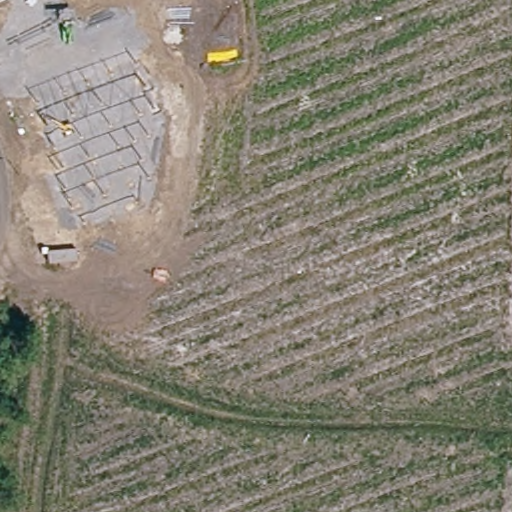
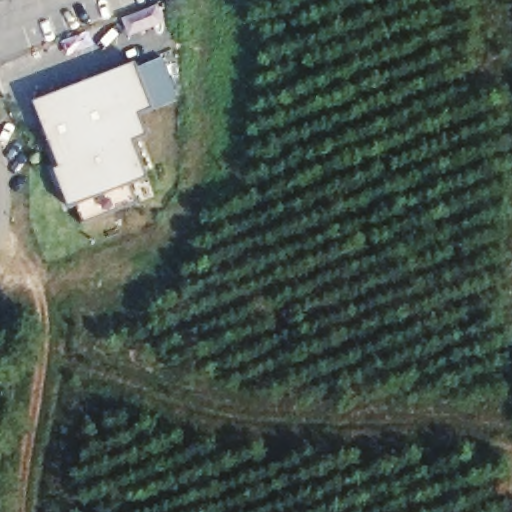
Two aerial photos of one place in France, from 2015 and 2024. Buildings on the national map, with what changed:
unchanged [(0,1),(0,0),(1,0),(0,1)]
new [(132,60),(150,107),(136,113),(145,134),(131,139),(145,176),(127,183),(134,201),(79,223),(72,205),(66,207),(51,168),(56,166),(30,101),(132,60)]

